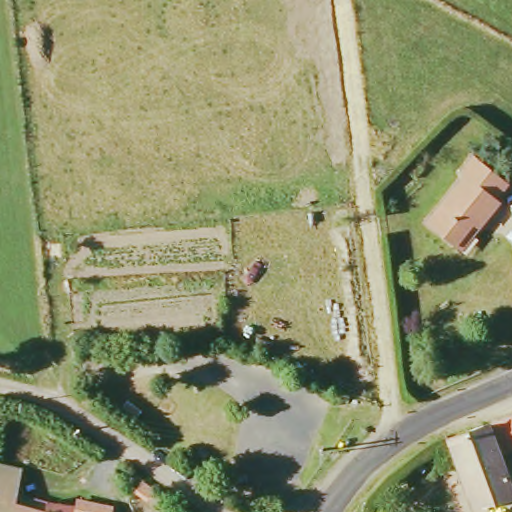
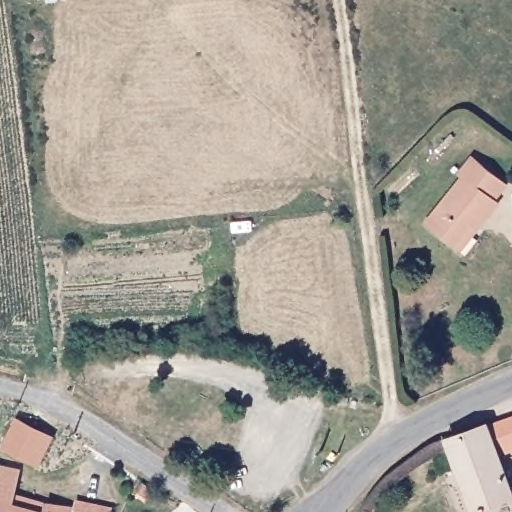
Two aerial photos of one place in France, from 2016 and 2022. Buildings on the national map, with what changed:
unchanged [(453,248),(427,229),(464,177),(460,174),(473,160),(506,186),(496,199),(501,204),(480,232),(462,255),(453,248)]
new [(18,416),(55,436),(39,467),(2,449),(18,416)]
unchanged [(512,492),(512,499),(478,512),(475,512),(449,446),(489,430),(512,492)]
unchanged [(332,446),(341,435),(352,444),(348,447),(342,456),(332,446)]
unchanged [(19,471),(18,488),(9,487),(6,509),(17,512),(0,512),(0,469),(19,471)]
unchanged [(58,512),(41,512),(42,508),(58,512)]

